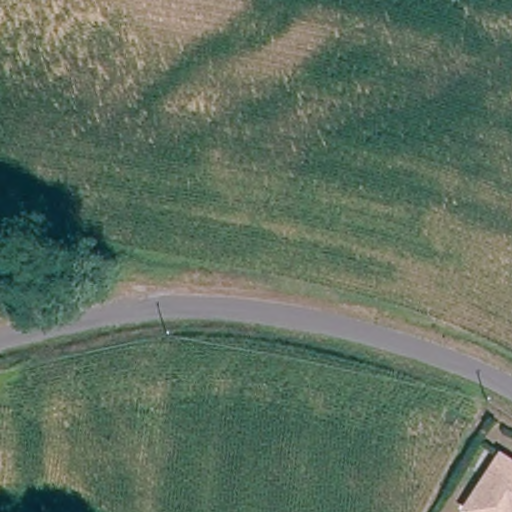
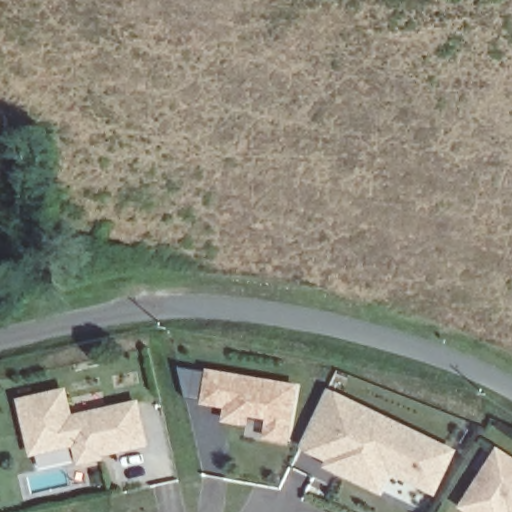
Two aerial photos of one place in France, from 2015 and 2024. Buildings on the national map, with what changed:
new [(205,371),(207,367),(298,383),(289,445),(262,441),(265,418),(250,415),(247,426),(220,423),(222,408),(199,405),(200,400),(186,397),(179,367),(205,371)]
new [(72,413),(138,398),(148,446),(102,456),(105,460),(78,466),(73,446),(30,455),(17,398),(66,387),(72,413)]
new [(456,449),(435,496),(392,474),(380,495),(322,467),(325,461),(299,448),(329,388),(456,449)]
unchanged [(502,512),(479,512),(460,500),(493,446),(512,458),(512,508),(507,505),(502,512)]

